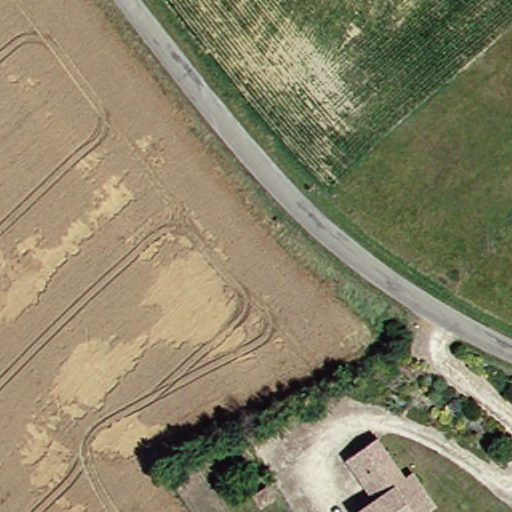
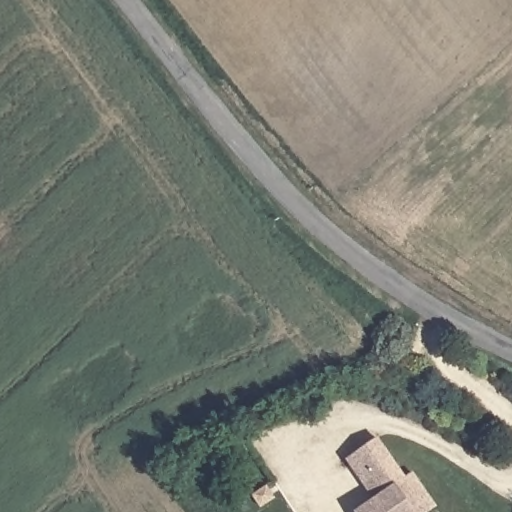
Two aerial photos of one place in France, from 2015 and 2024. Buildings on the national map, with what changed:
unchanged [(372,493),(364,480),(352,460),(384,441),(409,484),(416,480),(427,496),(436,512),(360,512),(377,501),(372,493)]

